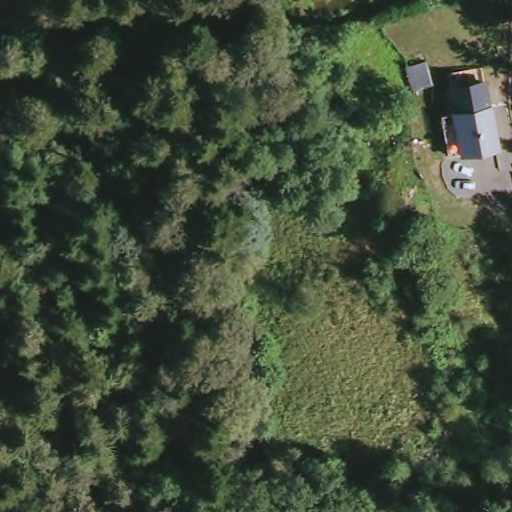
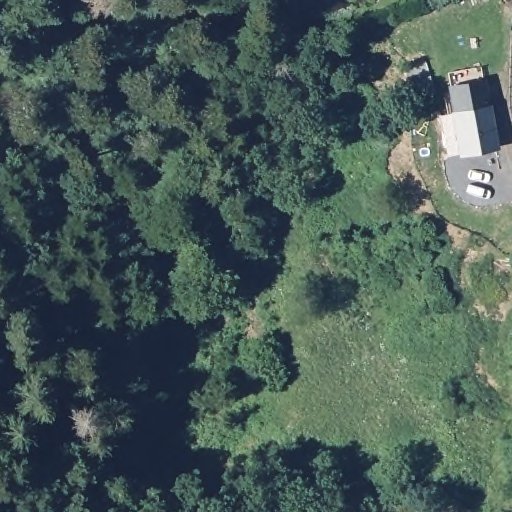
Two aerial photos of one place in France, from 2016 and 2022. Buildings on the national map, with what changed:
unchanged [(464,153),(458,110),(508,107),(511,149),(464,153)]

